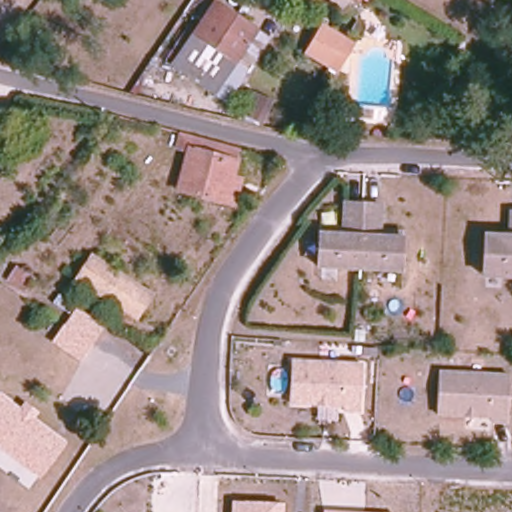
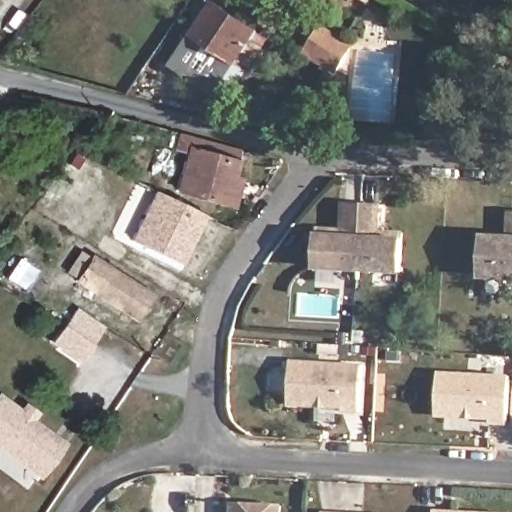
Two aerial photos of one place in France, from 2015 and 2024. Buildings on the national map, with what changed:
unchanged [(199,37),(221,5),(263,34),(241,66),(199,37)]
unchanged [(314,57),(328,31),(350,43),(335,70),(314,57)]
unchanged [(222,95),(180,66),(199,37),(241,66),(222,95)]
unchanged [(237,210),(226,207),(178,195),(189,153),(184,152),(177,150),(180,139),(191,142),(240,156),(233,180),(245,182),(237,210)]
new [(153,191),(203,215),(179,264),(129,240),(153,191)]
unchanged [(311,268),(312,230),(337,231),(345,231),(346,204),(364,205),(361,270),(311,268)]
unchanged [(382,232),(391,232),(414,233),(413,272),(361,270),(364,205),(383,205),(382,232)]
unchanged [(474,234),(500,234),(508,234),(509,210),(512,211),(512,276),(473,275),(474,234)]
unchanged [(147,299),(132,319),(80,283),(75,279),(90,259),(95,262),(147,299)]
unchanged [(7,281),(16,267),(35,279),(25,293),(7,281)]
unchanged [(97,337),(86,353),(56,332),(68,317),(97,337)]
unchanged [(288,404),(291,362),(362,367),(359,413),(342,412),(342,407),(327,406),(315,406),(288,404)]
unchanged [(433,414),(435,372),(506,376),(503,422),(486,421),(487,417),(471,416),(461,415),(433,414)]
unchanged [(48,451),(37,469),(0,447),(0,403),(13,410),(18,403),(27,408),(22,415),(31,420),(57,435),(48,451)]
unchanged [(284,502),(284,512),(232,512),(232,500),(284,502)]
unchanged [(364,512),(323,512),(323,509),(364,512)]
new [(482,512),(435,512),(435,509),(482,512)]

